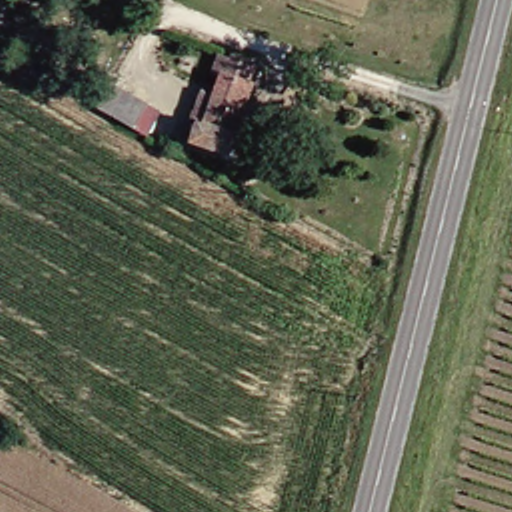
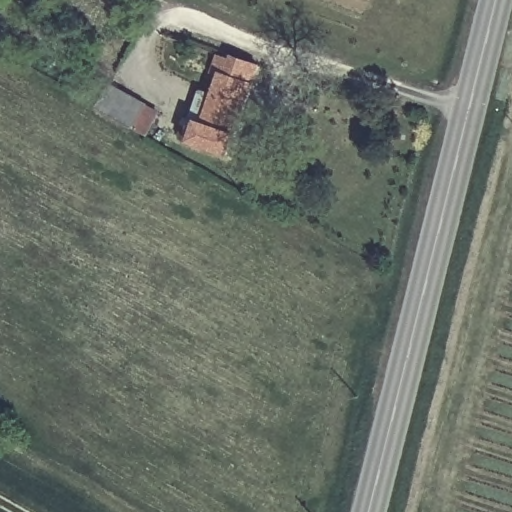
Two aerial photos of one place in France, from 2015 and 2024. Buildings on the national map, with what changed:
unchanged [(260,64),(236,149),(200,139),(205,120),(200,118),(209,90),(222,94),(226,74),(220,73),(225,54),(260,64)]
unchanged [(119,110),(120,106),(97,94),(103,83),(127,95),(134,84),(170,104),(156,130),(119,110)]

